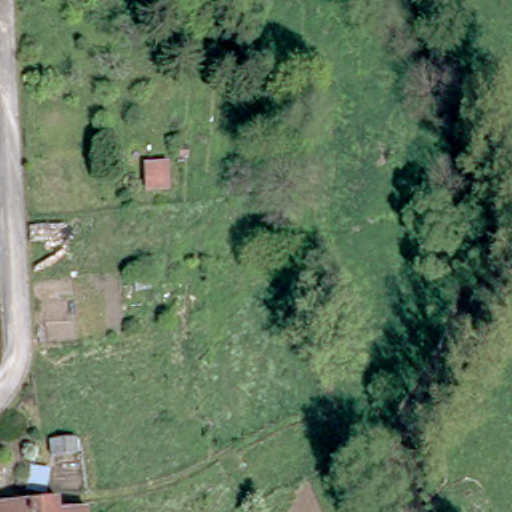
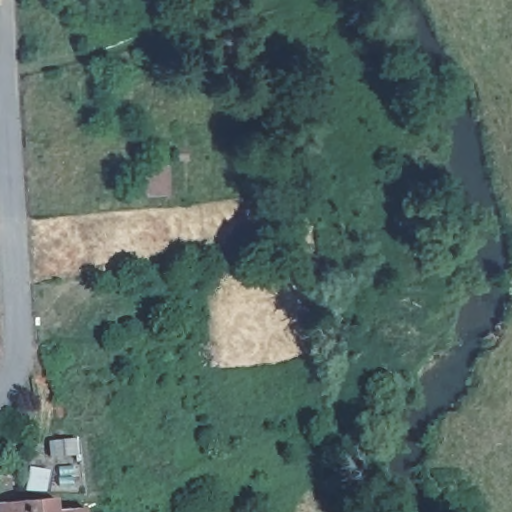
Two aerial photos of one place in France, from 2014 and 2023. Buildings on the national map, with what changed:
unchanged [(165,189),(146,192),(143,167),(162,165),(165,189)]
unchanged [(82,440),(83,455),(56,455),(55,441),(82,440)]
unchanged [(46,472),(46,495),(23,496),(25,468),(46,472)]
unchanged [(52,512),(0,512),(0,506),(51,502),(52,512)]
unchanged [(238,512),(237,507),(245,505),(247,512),(238,512)]
unchanged [(81,512),(61,512),(80,508),(81,512)]

